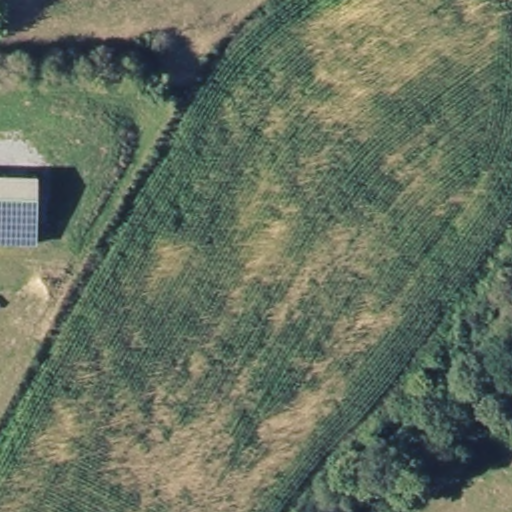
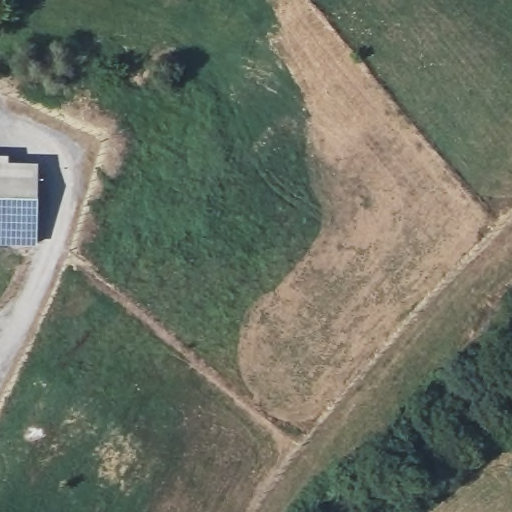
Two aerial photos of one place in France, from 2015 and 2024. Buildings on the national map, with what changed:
unchanged [(10,163),(36,165),(35,241),(0,240),(0,152),(8,152),(10,163)]

